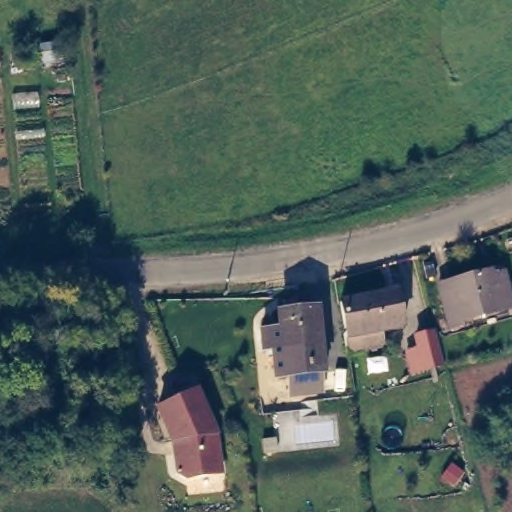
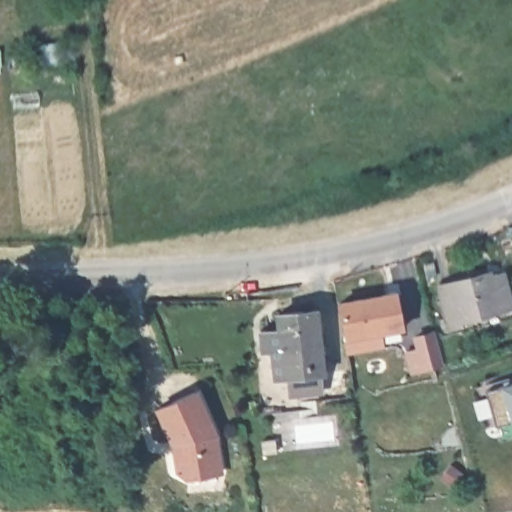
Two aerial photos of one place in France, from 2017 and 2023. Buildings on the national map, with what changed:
unchanged [(487,277),(499,274),(508,307),(457,321),(459,326),(446,330),(438,302),(434,286),(447,283),(486,272),(487,277)]
unchanged [(344,330),(346,330),(340,298),(397,287),(404,323),(382,327),(385,342),(347,349),(344,330)]
unchanged [(328,368),(291,372),(280,373),(277,345),(288,344),(284,310),(321,305),(328,368)]
unchanged [(441,365),(428,368),(421,345),(434,341),(441,365)]
new [(486,391),(501,385),(512,381),(512,422),(497,427),(486,391)]
unchanged [(225,455),(223,473),(183,480),(176,447),(160,406),(197,391),(225,455)]

